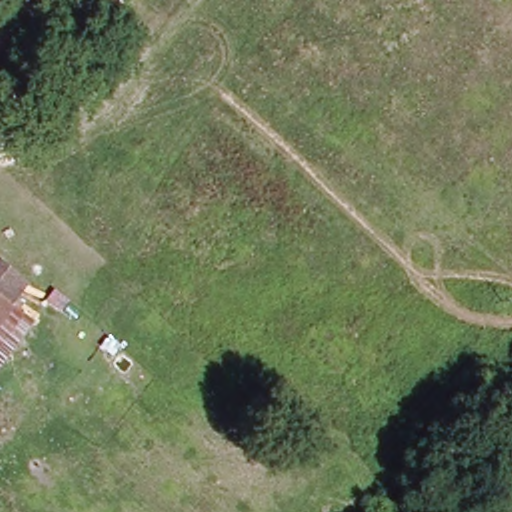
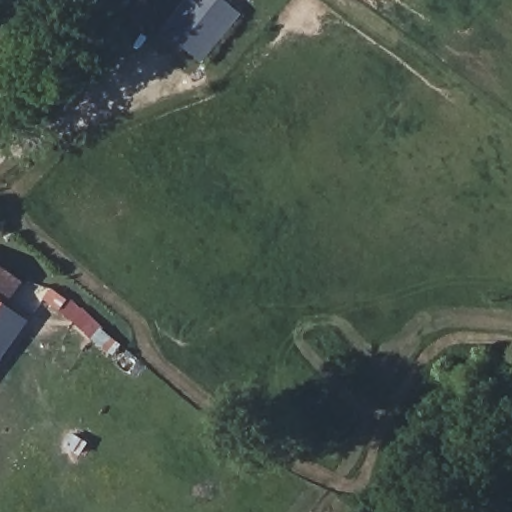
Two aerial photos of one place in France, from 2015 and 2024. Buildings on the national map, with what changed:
new [(165,30),(189,0),(226,0),(244,15),(205,62),(165,30)]
demolished [(0,56),(0,46),(5,51),(0,56)]
unchanged [(12,308),(0,299),(0,261),(29,282),(12,308)]
unchanged [(0,324),(0,299),(12,308),(0,324)]

